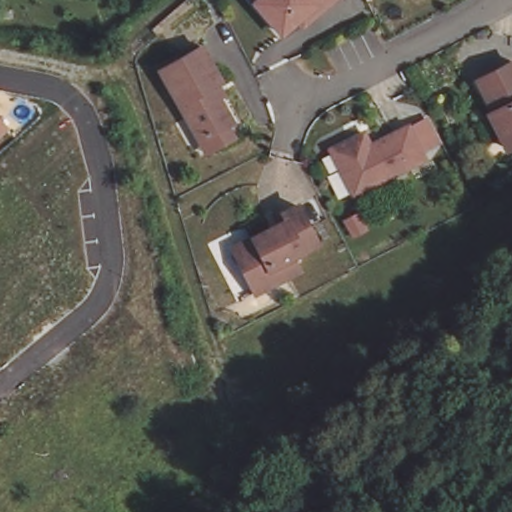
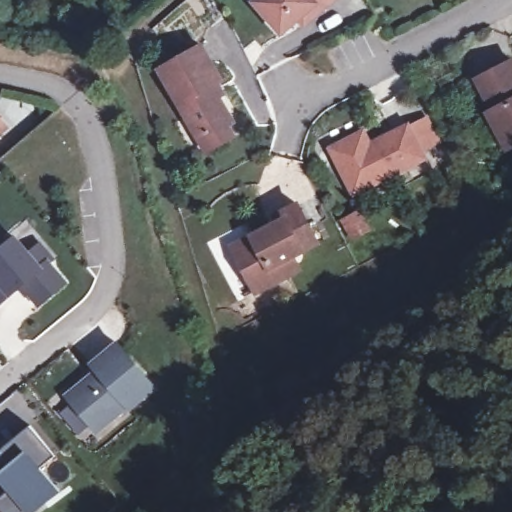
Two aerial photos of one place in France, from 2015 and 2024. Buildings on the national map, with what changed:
unchanged [(251,3),(248,0),(329,0),(316,11),(299,26),(294,19),(277,34),(251,3)]
unchanged [(201,149),(195,137),(155,66),(196,42),(216,77),(213,80),(219,91),(214,94),(228,118),(222,122),(229,134),(201,149)]
unchanged [(512,147),(508,149),(489,114),(494,111),(478,80),(512,62),(512,147)]
unchanged [(8,130),(0,136),(0,120),(8,130)]
unchanged [(364,133),(371,146),(409,127),(425,160),(354,195),(331,150),(364,133)]
unchanged [(239,246),(278,226),(274,219),(283,215),(298,206),(310,230),(318,244),(293,257),(300,271),(256,293),(244,270),(233,249),(239,246)]
new [(16,237),(29,254),(41,244),(53,258),(49,262),(65,282),(39,304),(23,284),(0,303),(0,251),(16,237)]
new [(98,371),(96,367),(107,359),(104,355),(118,343),(154,387),(129,407),(128,406),(96,431),(68,396),(88,379),(98,371)]
new [(10,488),(0,476),(0,473),(10,465),(0,452),(0,450),(30,425),(55,456),(40,467),(59,491),(33,512),(3,512),(0,509),(0,496),(10,488)]
unchanged [(316,505),(323,512),(308,512),(316,505)]

